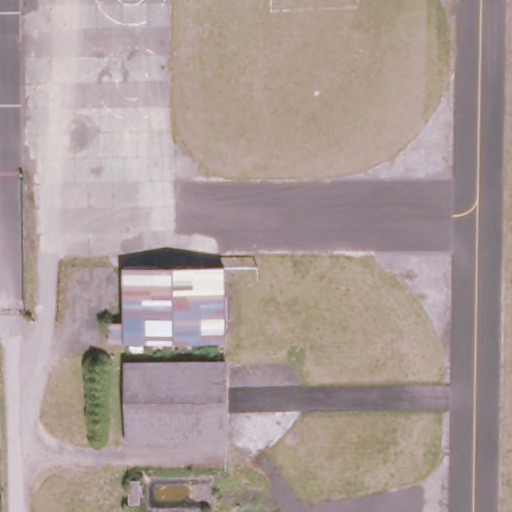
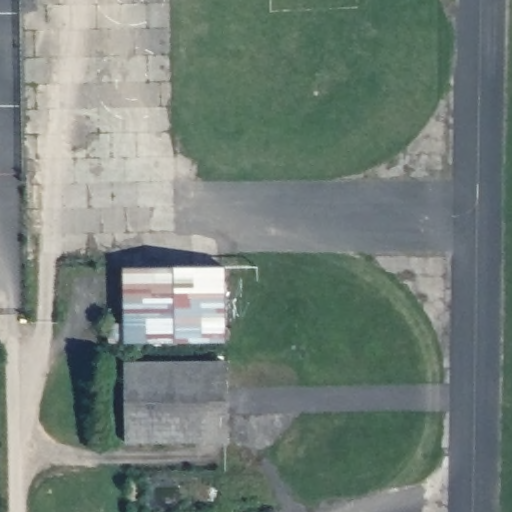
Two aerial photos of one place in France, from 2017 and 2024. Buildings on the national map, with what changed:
unchanged [(223,266),(224,342),(109,343),(109,322),(124,322),(123,267),(223,266)]
unchanged [(226,431),(125,433),(124,357),(225,356),(226,431)]

